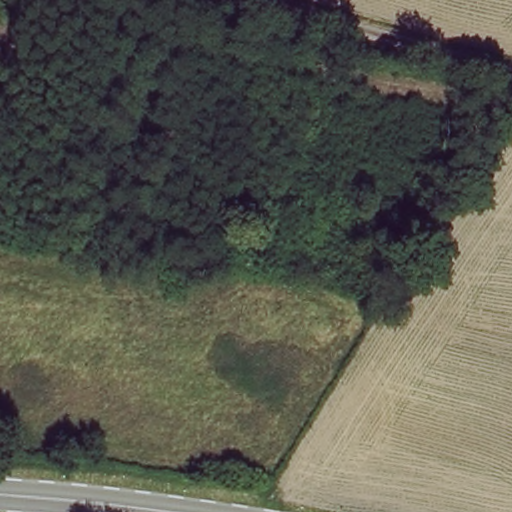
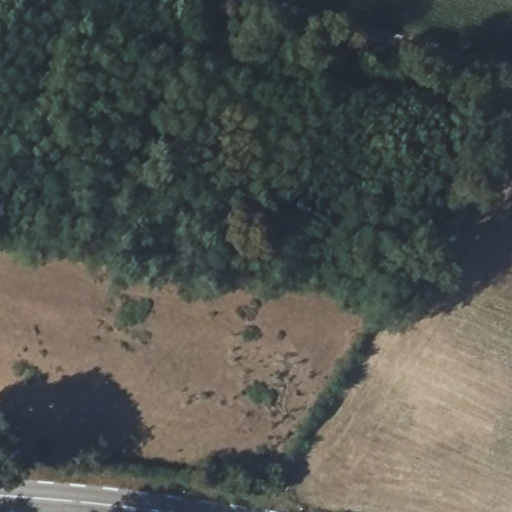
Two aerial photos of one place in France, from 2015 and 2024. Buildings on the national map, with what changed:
[]

